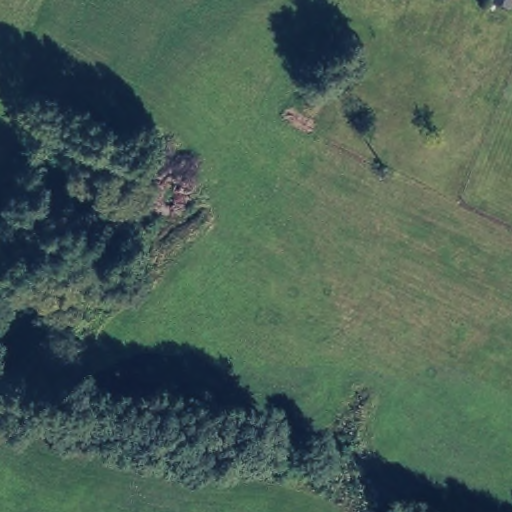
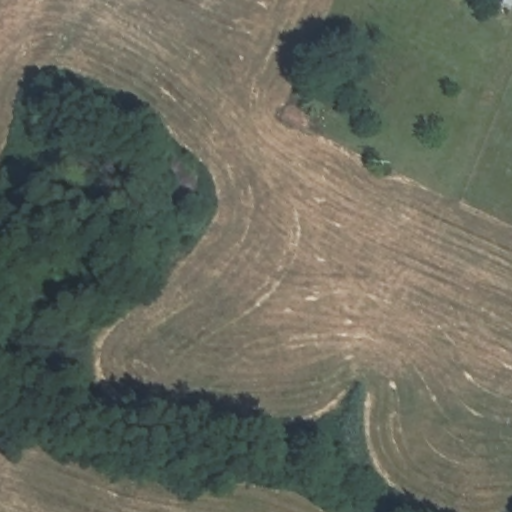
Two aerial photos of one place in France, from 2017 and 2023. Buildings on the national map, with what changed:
unchanged [(512,8),(497,1),(497,0),(512,0),(512,8)]

